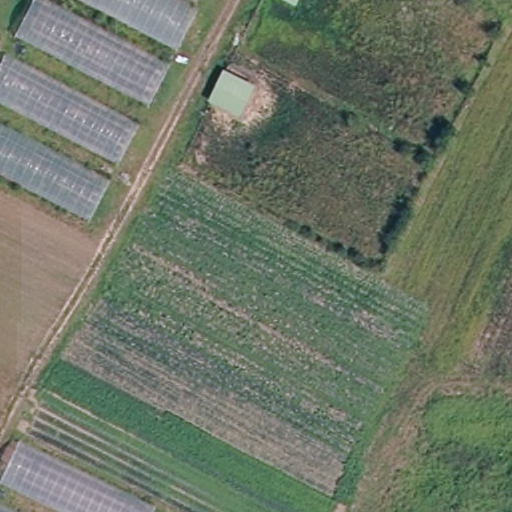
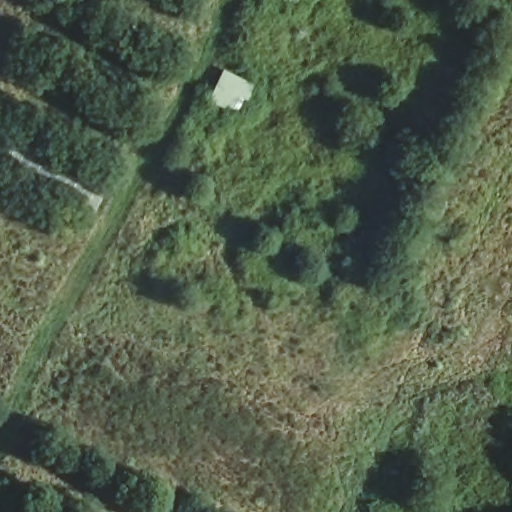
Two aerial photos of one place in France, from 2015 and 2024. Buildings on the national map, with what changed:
demolished [(92,218),(0,174),(0,66),(35,0),(202,0),(92,218)]
unchanged [(289,0),(297,0),(295,4),(289,0)]
unchanged [(209,100),(225,68),(255,82),(240,115),(209,100)]
demolished [(145,225),(163,194),(194,211),(176,243),(145,225)]
demolished [(166,512),(0,512),(0,488),(23,441),(166,512)]

